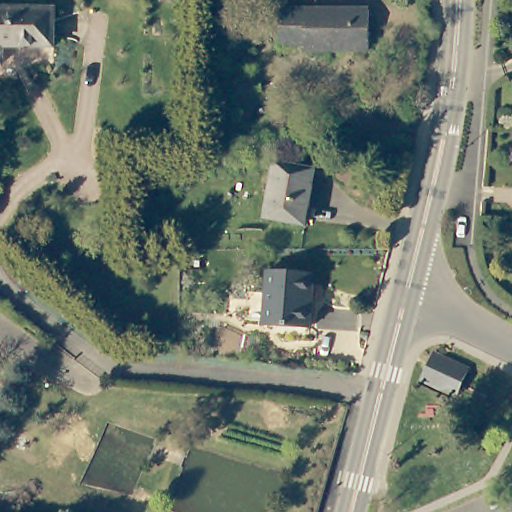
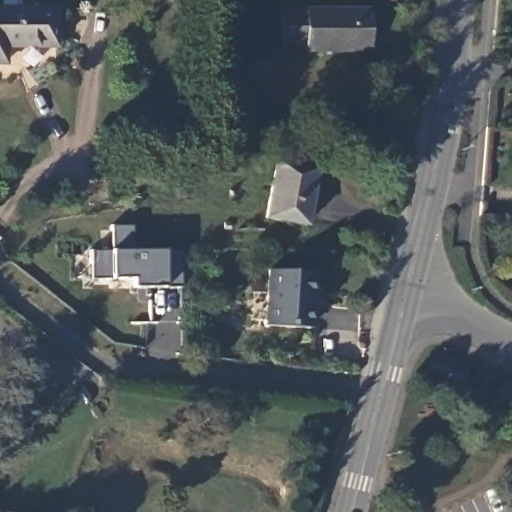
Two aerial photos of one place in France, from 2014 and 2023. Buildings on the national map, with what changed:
unchanged [(53,43),(7,41),(6,61),(0,61),(0,6),(56,9),(53,43)]
unchanged [(306,54),(306,47),(282,46),(282,11),(370,13),(369,54),(306,54)]
unchanged [(299,165),(314,168),(302,222),(297,221),(266,215),(275,161),(299,165)]
new [(164,288),(131,288),(131,278),(109,279),(89,279),(90,252),(111,252),(112,226),(135,226),(134,249),(164,250),(180,250),(180,289),(164,288)]
unchanged [(266,325),(272,272),(301,277),(315,279),(307,331),(300,330),(266,325)]
unchanged [(469,369),(447,395),(423,377),(445,350),(469,369)]

